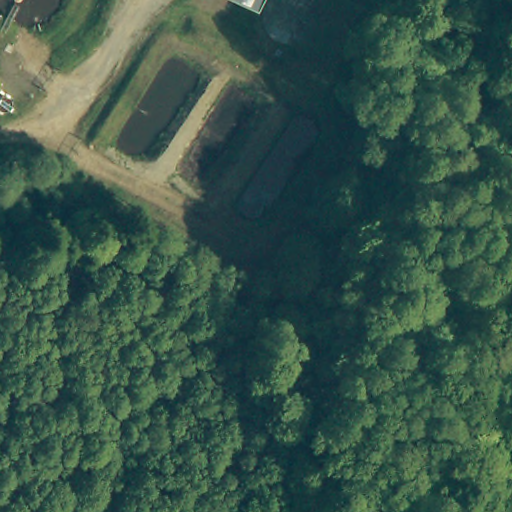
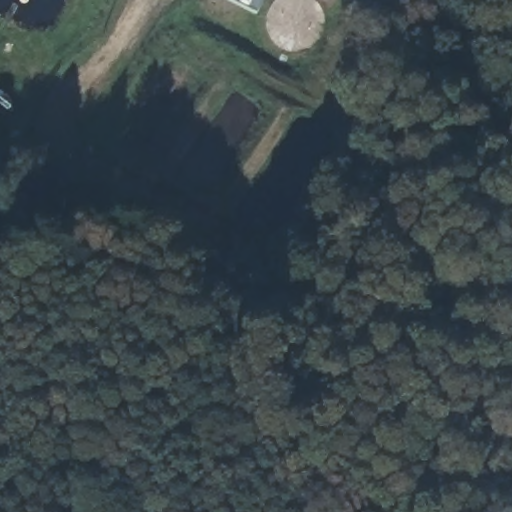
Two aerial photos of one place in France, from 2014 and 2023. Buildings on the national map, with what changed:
unchanged [(259,12),(233,0),(265,0),(259,12)]

